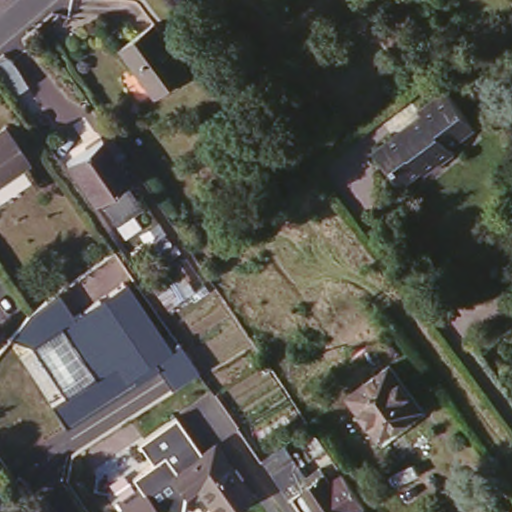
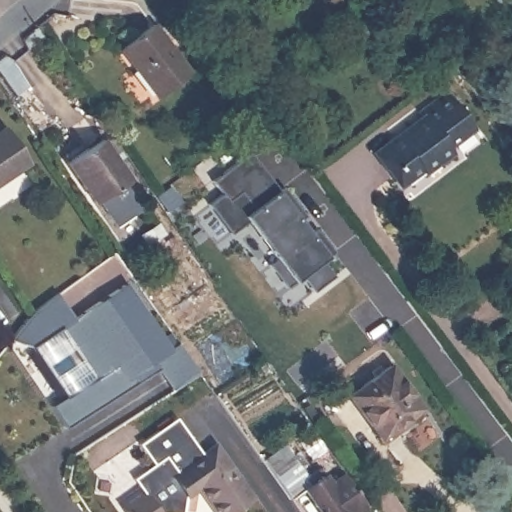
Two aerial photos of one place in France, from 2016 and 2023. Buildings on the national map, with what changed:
unchanged [(152,24),(188,73),(156,97),(120,49),(152,24)]
unchanged [(382,169),(370,153),(394,134),(395,136),(406,128),(405,126),(416,118),(412,111),(440,90),(467,127),(442,146),(449,154),(434,165),(432,162),(418,172),(415,169),(398,182),(394,184),(382,169)]
unchanged [(5,128),(28,162),(0,182),(0,132),(5,128)]
unchanged [(105,134),(133,175),(129,178),(147,204),(121,222),(103,196),(99,199),(71,158),(105,134)]
new [(297,276),(282,289),(266,264),(274,259),(246,221),(229,234),(206,203),(220,193),(211,179),(249,151),(277,189),(280,186),(303,217),(298,220),(307,234),(314,229),(331,254),(318,263),(329,278),(309,292),(297,276)]
demolished [(217,194),(233,183),(245,199),(219,218),(207,202),(217,194)]
unchanged [(178,247),(204,285),(167,309),(143,272),(178,247)]
unchanged [(30,314),(56,291),(77,314),(127,285),(148,317),(157,313),(170,330),(201,378),(174,394),(157,370),(67,426),(54,407),(67,396),(38,352),(33,347),(14,339),(30,314)]
unchanged [(374,439),(343,396),(383,366),(415,409),(413,410),(417,416),(393,433),(378,444),(374,439)]
unchanged [(184,512),(125,512),(117,503),(139,487),(135,479),(154,464),(140,441),(175,418),(201,454),(170,477),(186,499),(184,512)]
unchanged [(312,429),(326,449),(317,455),(303,435),(312,429)]
unchanged [(213,446),(249,498),(230,512),(196,512),(170,477),(213,446)]
unchanged [(282,446),(305,479),(319,469),(329,484),(343,474),(365,505),(355,512),(319,512),(303,489),(289,499),(288,497),(262,460),(282,446)]

